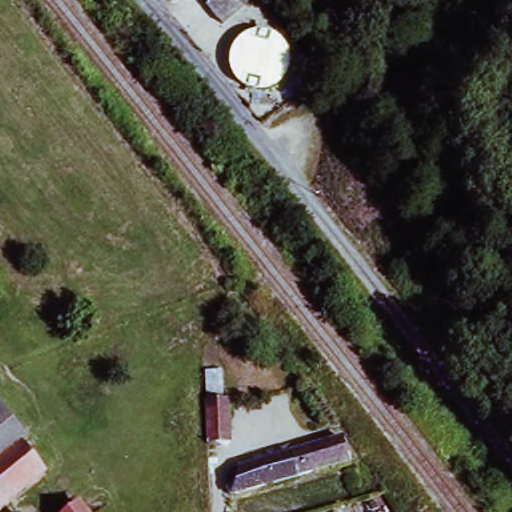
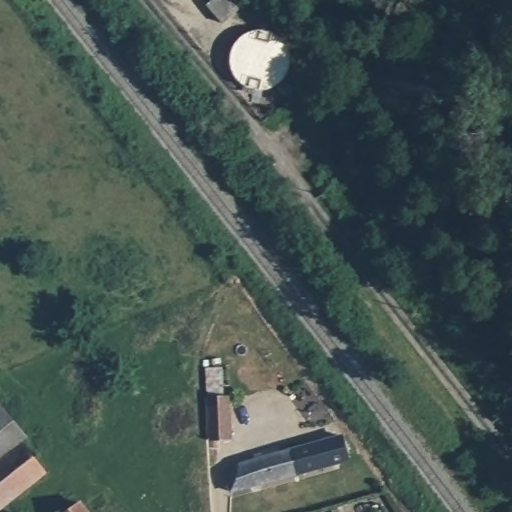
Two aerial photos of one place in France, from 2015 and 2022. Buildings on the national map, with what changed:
unchanged [(209,440),(209,431),(209,398),(229,398),(229,431),(229,439),(209,440)]
unchanged [(16,438),(0,451),(0,419),(16,438)]
unchanged [(232,489),(230,478),(231,466),(292,449),(339,437),(343,456),(297,468),(298,473),(232,489)]
unchanged [(40,472),(27,482),(0,504),(0,451),(16,438),(19,444),(40,472)]
unchanged [(89,512),(60,512),(80,498),(89,512)]

